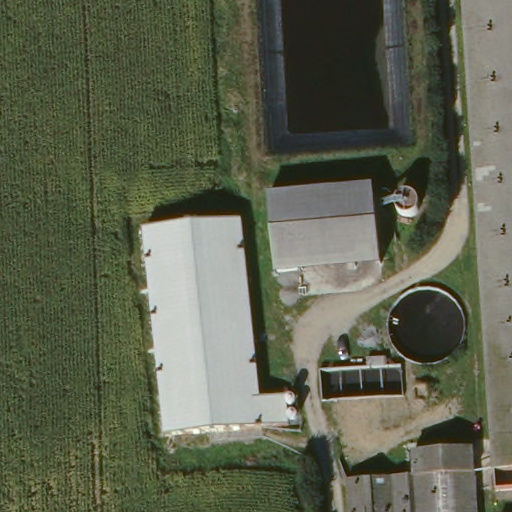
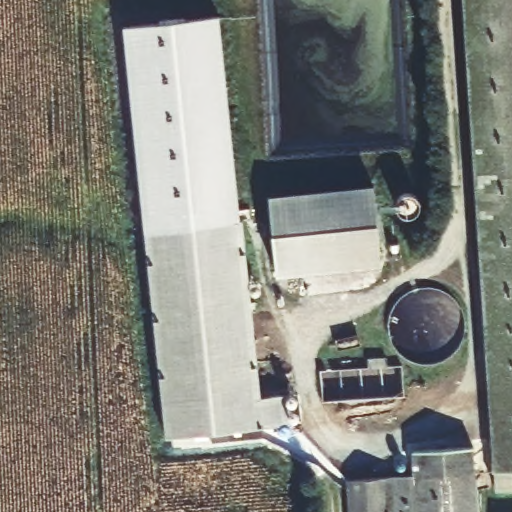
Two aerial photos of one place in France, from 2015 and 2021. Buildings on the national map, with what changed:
unchanged [(470,0),(512,0),(512,496),(495,496),(495,481),(470,0)]
new [(124,28),(220,18),(242,221),(144,232),(124,28)]
unchanged [(264,198),(371,188),(378,270),(272,281),(264,198)]
unchanged [(165,437),(144,232),(242,221),(262,400),(287,397),(290,424),(165,437)]
unchanged [(469,450),(473,512),(345,512),(342,479),(413,475),(413,457),(469,450)]

